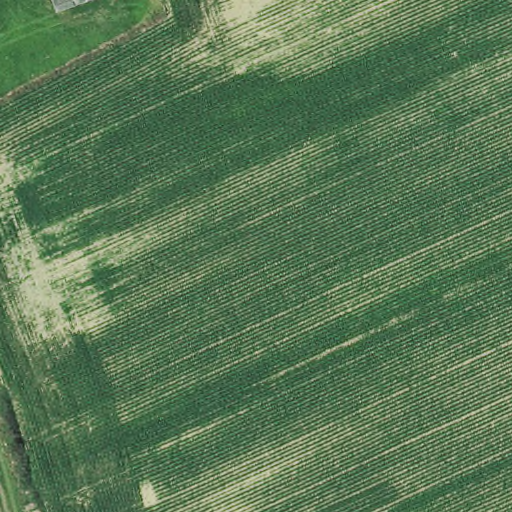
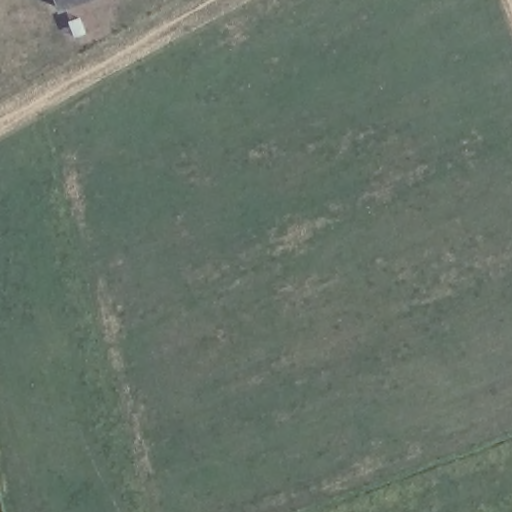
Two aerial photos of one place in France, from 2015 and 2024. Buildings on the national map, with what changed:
unchanged [(106,4),(61,18),(54,0),(105,0),(106,4)]

